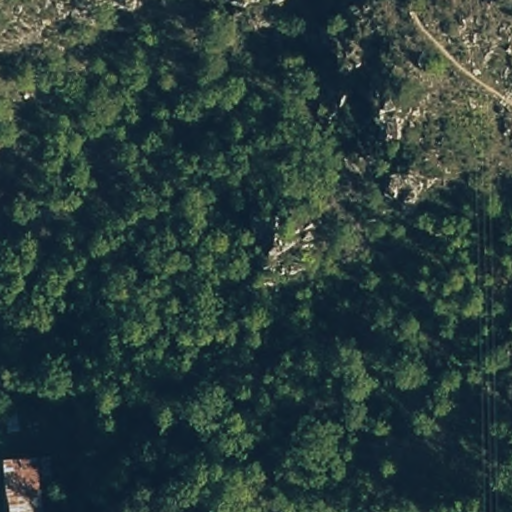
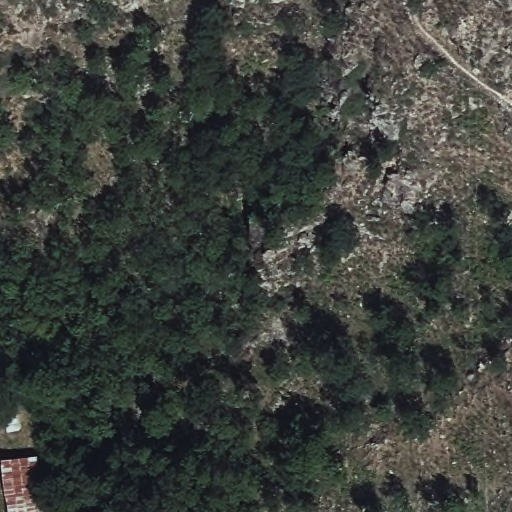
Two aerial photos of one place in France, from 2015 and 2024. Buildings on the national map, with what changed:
unchanged [(41,457),(43,512),(15,512),(9,457),(41,457)]

